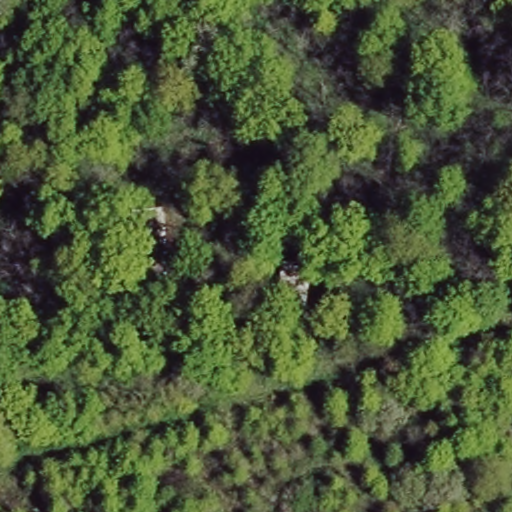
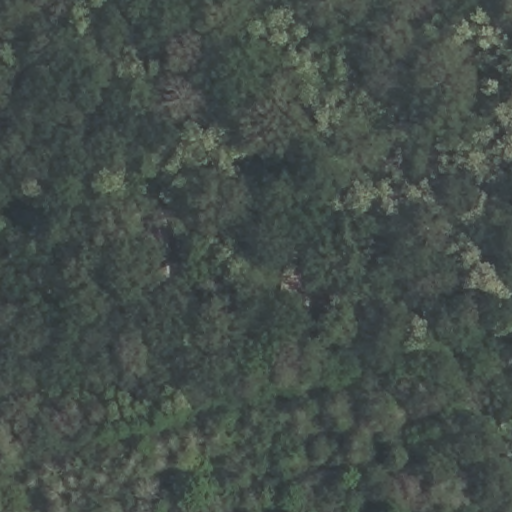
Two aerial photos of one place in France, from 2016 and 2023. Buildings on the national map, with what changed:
unchanged [(169,297),(132,297),(129,212),(165,212),(169,297)]
unchanged [(282,262),(312,265),(309,316),(276,311),(282,262)]

